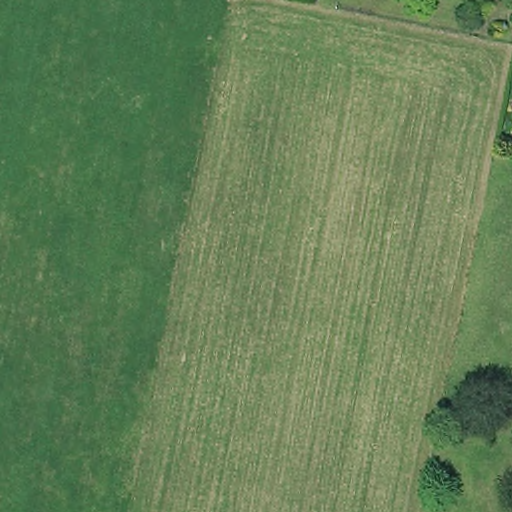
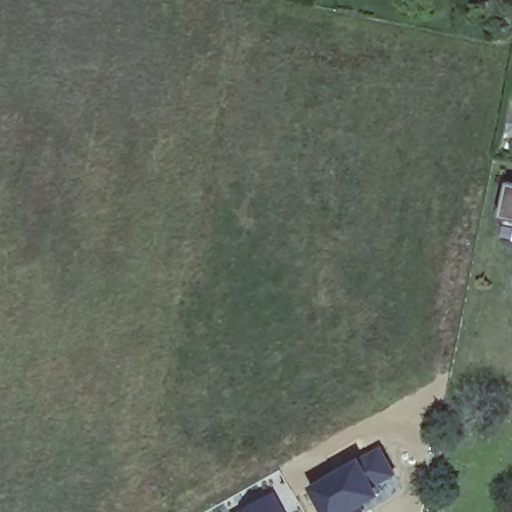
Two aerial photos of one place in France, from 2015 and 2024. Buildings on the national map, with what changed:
new [(511,181),(512,181),(512,218),(503,216),(511,181)]
new [(370,512),(339,512),(321,482),(373,452),(399,494),(370,512)]
new [(247,512),(245,510),(278,492),(291,512),(247,512)]

